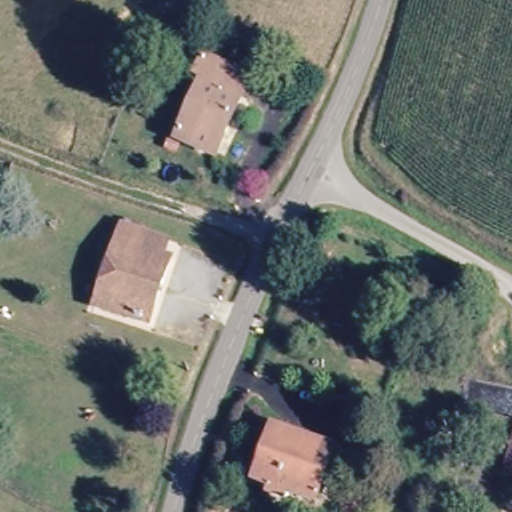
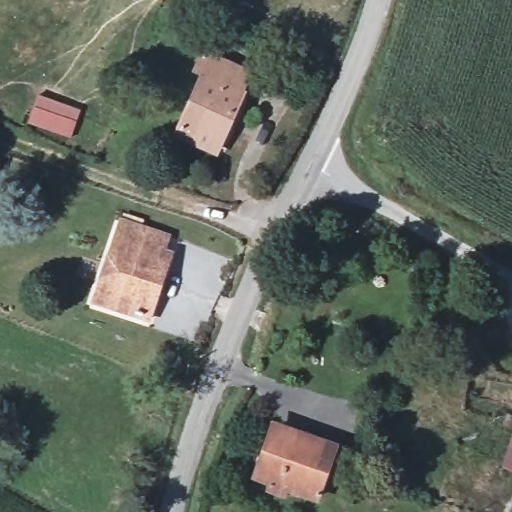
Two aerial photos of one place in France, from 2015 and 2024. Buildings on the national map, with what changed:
unchanged [(241,75),(232,98),(238,101),(212,158),(174,142),(199,86),(190,82),(199,55),(241,75)]
new [(69,139),(28,124),(38,95),(80,111),(69,139)]
unchanged [(164,232),(158,251),(167,253),(144,320),(90,303),(122,217),(164,232)]
unchanged [(331,445),(311,496),(286,484),(281,493),(264,485),(267,479),(247,470),(262,438),(266,439),(273,422),(331,445)]
new [(512,473),(501,469),(512,437),(512,473)]

